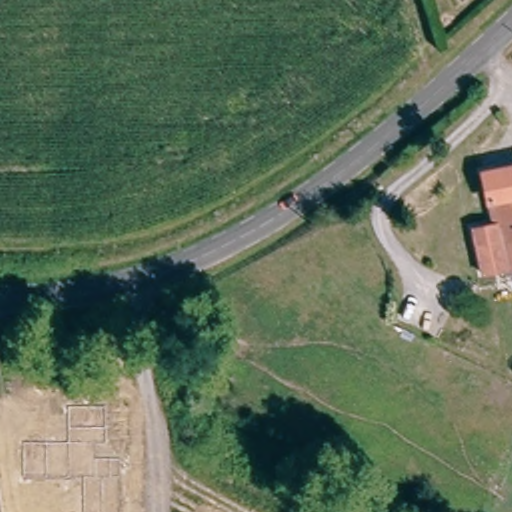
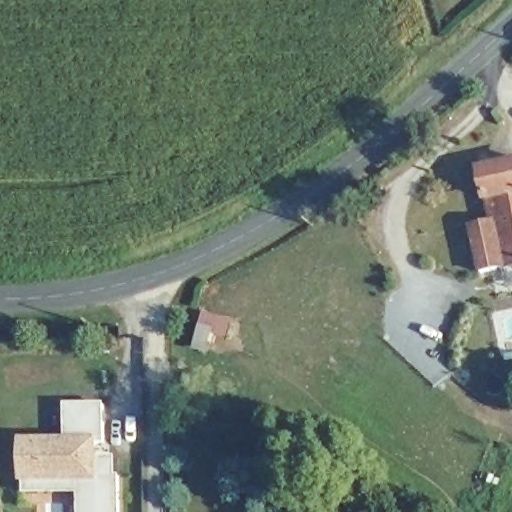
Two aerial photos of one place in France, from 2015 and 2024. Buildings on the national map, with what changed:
unchanged [(473,232),(493,227),(482,175),(512,170),(512,270),(485,276),(473,232)]
new [(68,403),(109,402),(108,444),(101,445),(101,457),(119,457),(119,475),(123,475),(123,512),(80,512),(80,491),(28,492),(28,481),(22,482),(21,438),(69,437),(68,403)]

